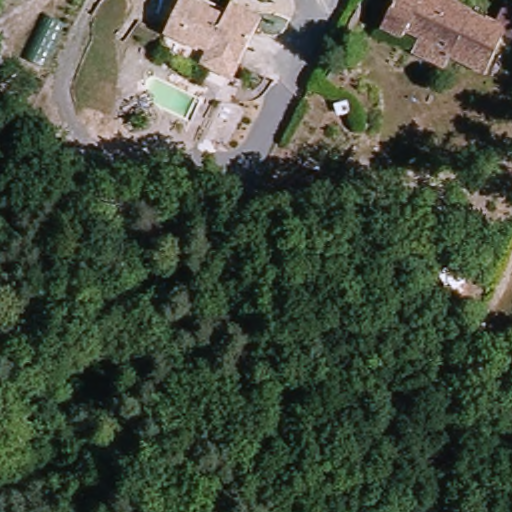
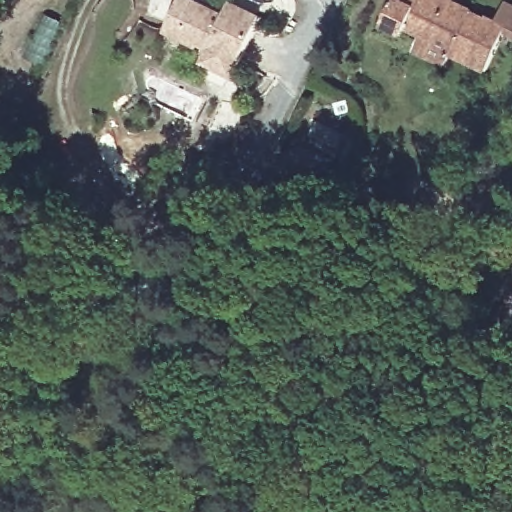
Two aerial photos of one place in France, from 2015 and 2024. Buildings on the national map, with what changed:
unchanged [(209,55),(200,51),(199,53),(166,36),(184,0),(197,0),(229,16),(233,9),(239,12),(263,24),(239,70),(232,83),(202,68),(209,55)]
unchanged [(478,14),(482,9),(497,19),(500,13),(507,16),(512,7),(512,33),(492,72),(455,52),(457,49),(415,24),(409,35),(393,25),(405,0),(462,0),(460,4),(478,14)]

